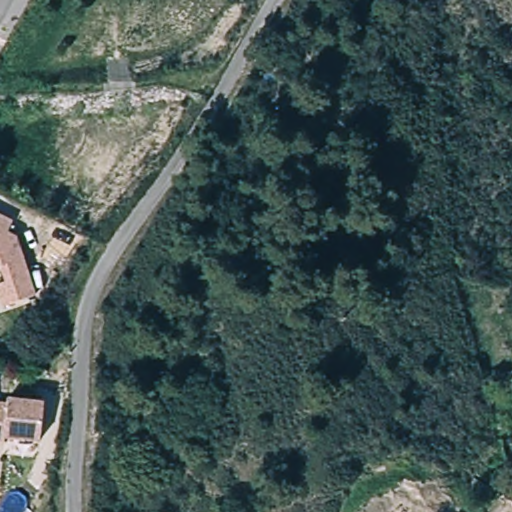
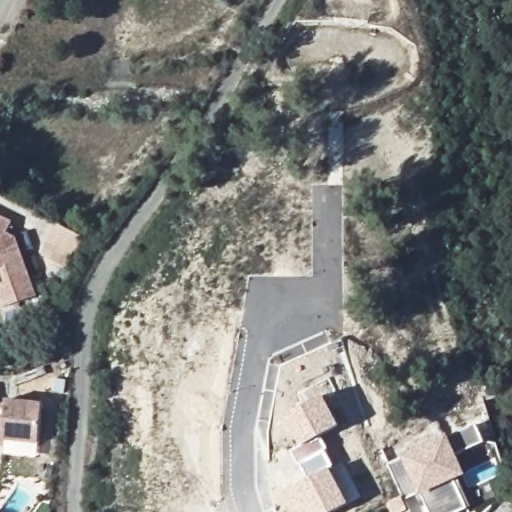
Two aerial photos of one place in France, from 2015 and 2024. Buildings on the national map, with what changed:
unchanged [(1,236),(10,240),(31,297),(0,308),(0,284),(1,284),(0,283),(0,222),(6,225),(1,236)]
new [(322,436),(329,450),(327,451),(336,467),(332,468),(351,503),(336,512),(298,512),(287,491),(296,486),(307,478),(293,452),(301,447),(285,416),(326,395),(342,426),(322,436)]
unchanged [(36,442),(1,442),(1,447),(0,447),(0,402),(36,402),(36,442)]
new [(455,478),(469,507),(459,512),(431,512),(423,493),(420,495),(419,493),(405,500),(389,465),(403,457),(402,455),(448,433),(450,437),(478,424),(486,442),(458,454),(467,473),(455,478)]

